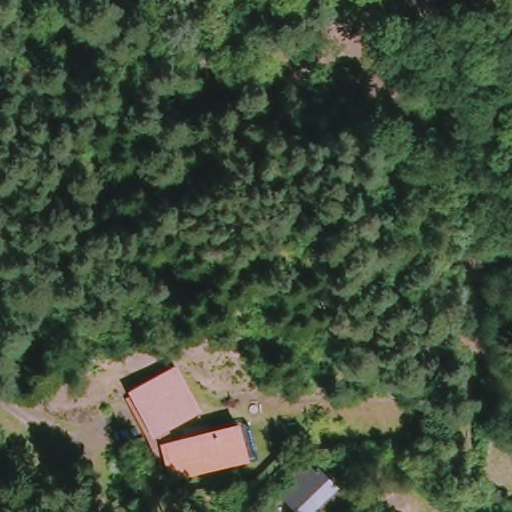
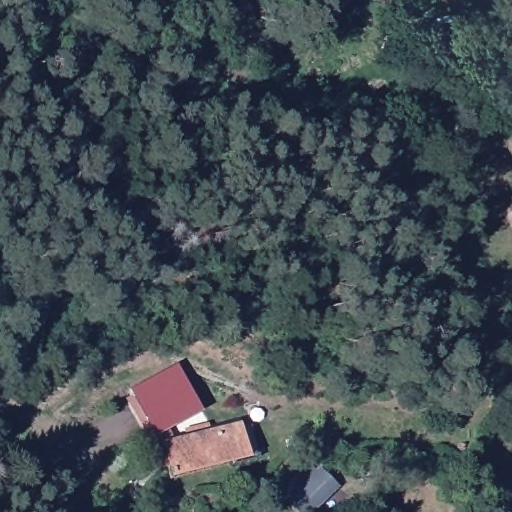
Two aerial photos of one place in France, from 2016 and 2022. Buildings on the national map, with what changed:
unchanged [(123,392),(171,363),(196,413),(147,438),(123,392)]
unchanged [(243,463),(169,484),(162,458),(155,459),(150,443),(181,429),(205,424),(208,438),(236,431),(243,463)]
unchanged [(315,472),(320,468),(335,483),(305,512),(300,512),(287,498),(278,489),(296,473),(307,462),(315,472)]

